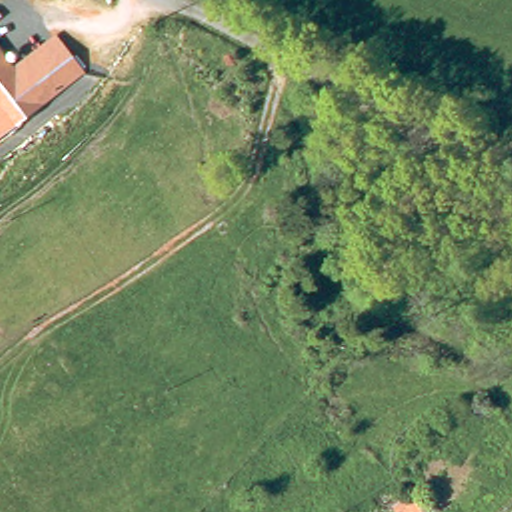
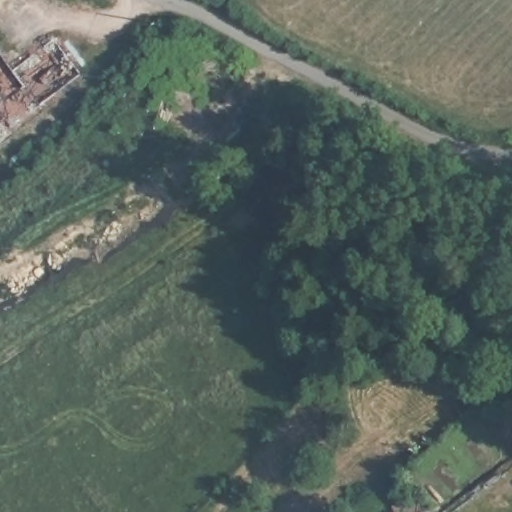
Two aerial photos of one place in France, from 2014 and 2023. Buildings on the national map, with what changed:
unchanged [(55,35),(85,75),(47,105),(15,65),(55,35)]
unchanged [(47,105),(0,140),(0,47),(47,105)]

